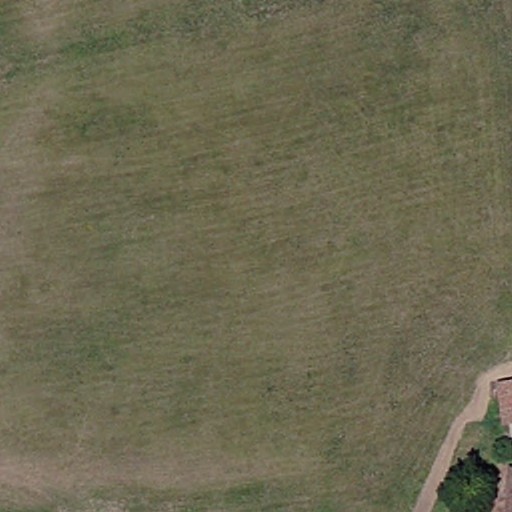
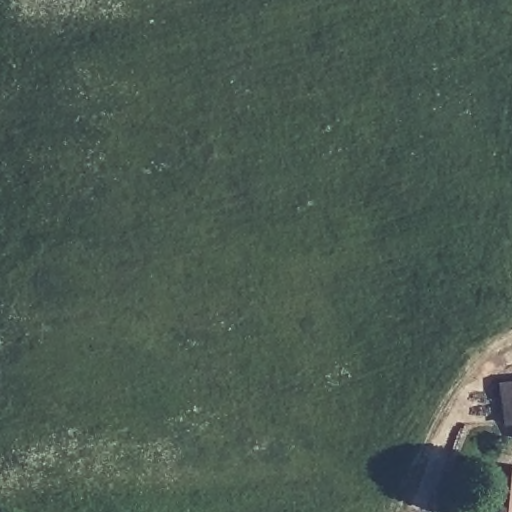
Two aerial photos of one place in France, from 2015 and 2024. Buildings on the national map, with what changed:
unchanged [(503,388),(512,387),(512,413),(504,413),(503,388)]
unchanged [(512,512),(510,512),(512,498),(512,512)]

